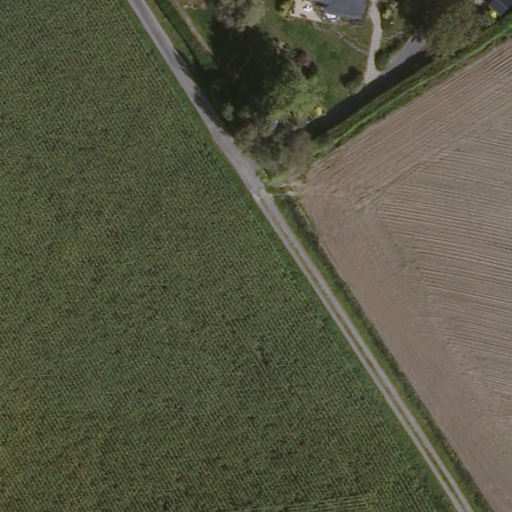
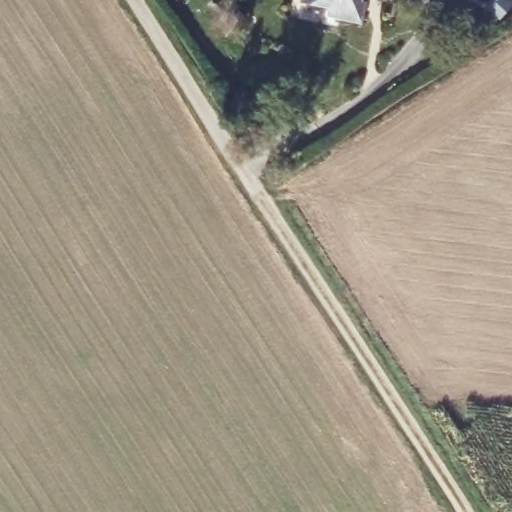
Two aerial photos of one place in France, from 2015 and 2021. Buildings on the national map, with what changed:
unchanged [(321,10),(297,6),(298,0),(359,0),(358,5),(364,6),(362,29),(337,26),(336,32),(317,29),(321,10)]

